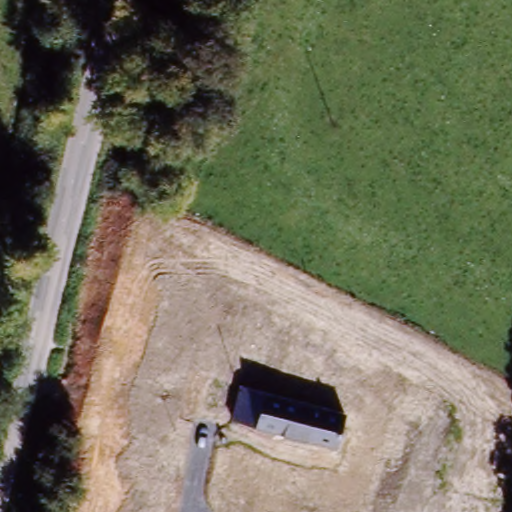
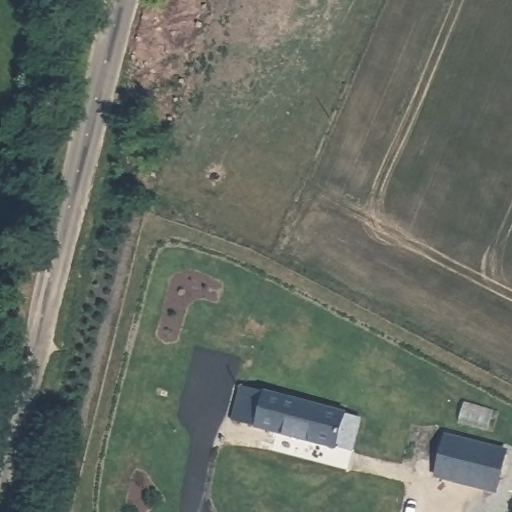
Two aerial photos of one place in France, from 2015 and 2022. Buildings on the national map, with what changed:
unchanged [(230,420),(238,386),(340,412),(334,434),(330,447),(230,420)]
new [(487,485),(438,472),(449,438),(472,444),(473,439),(487,442),(485,455),(495,458),(487,485)]
demolished [(509,450),(507,463),(512,464),(512,482),(510,491),(463,479),(472,446),(496,452),(497,446),(509,450)]

